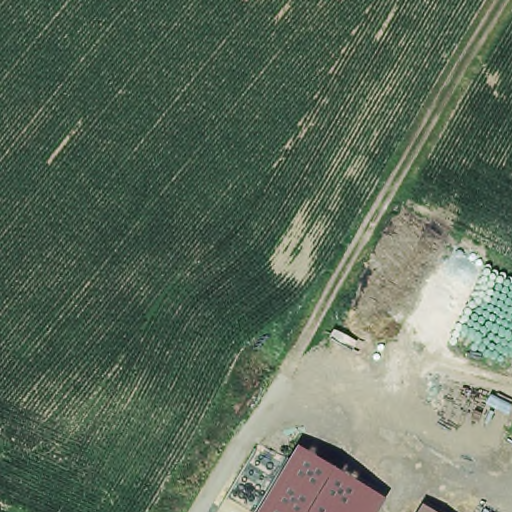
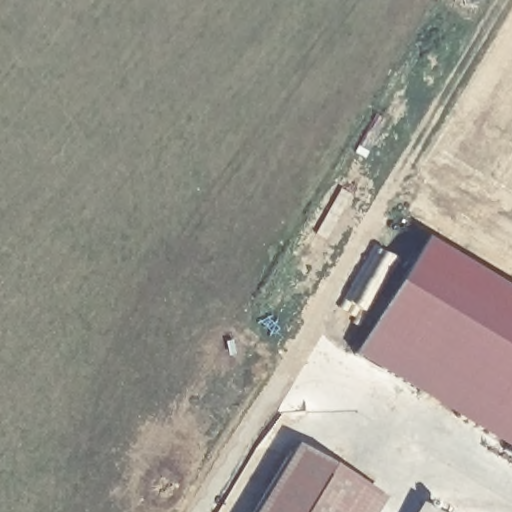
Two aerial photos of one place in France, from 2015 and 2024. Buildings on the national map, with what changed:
new [(427,238),(512,290),(512,451),(355,354),(427,238)]
unchanged [(377,501),(370,512),(277,512),(272,510),(306,456),(377,501)]
unchanged [(434,512),(417,512),(422,504),(434,512)]
unchanged [(277,512),(270,512),(272,510),(277,512)]

